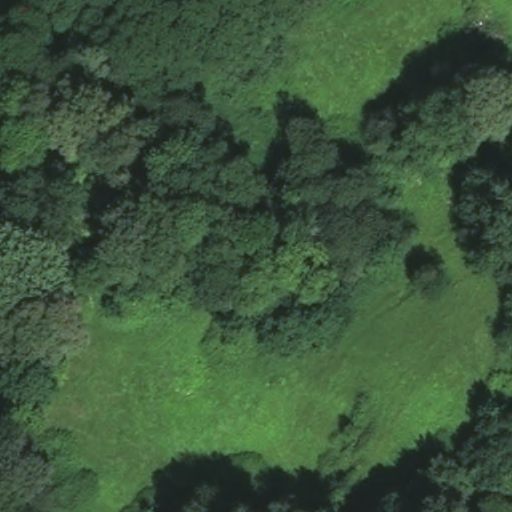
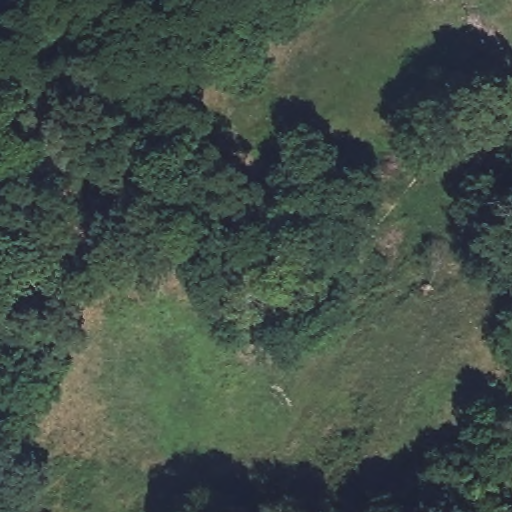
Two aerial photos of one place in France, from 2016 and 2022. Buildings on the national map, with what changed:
unchanged [(156,79),(172,75),(174,87),(159,89),(156,79)]

